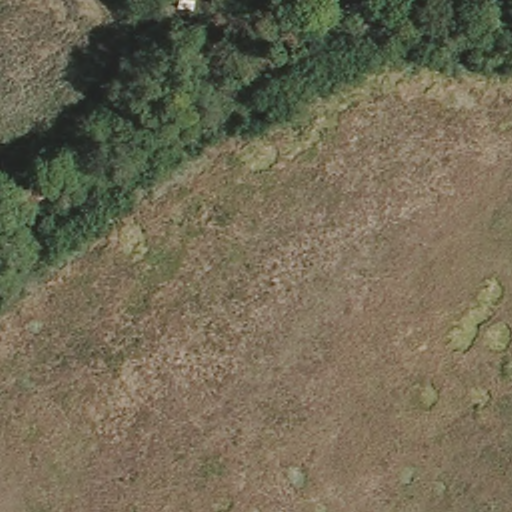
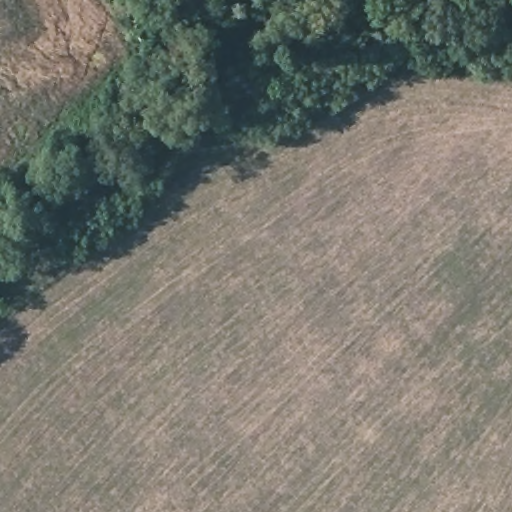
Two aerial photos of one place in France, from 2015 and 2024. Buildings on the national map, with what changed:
[]

